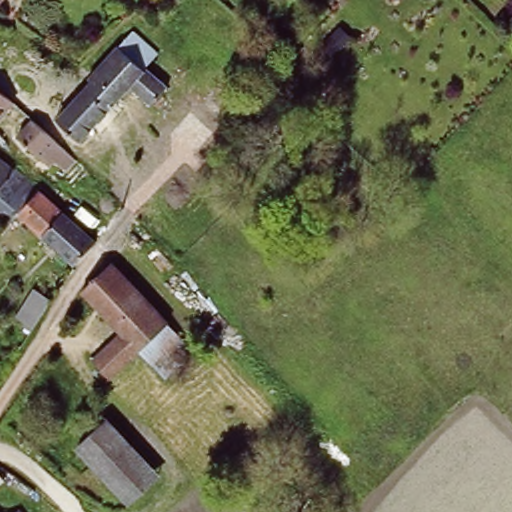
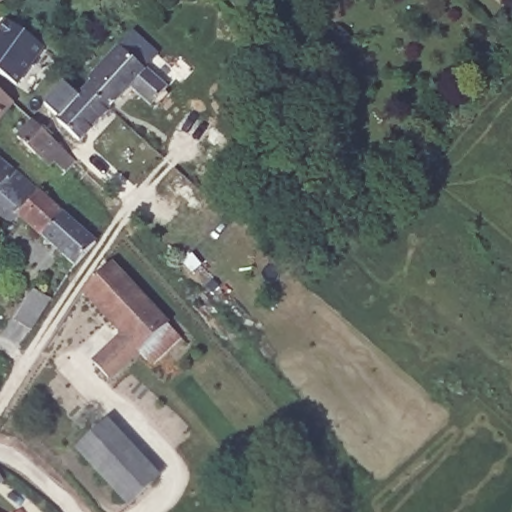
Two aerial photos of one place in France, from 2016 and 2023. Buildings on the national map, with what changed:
new [(0,72),(0,30),(7,20),(45,48),(17,85),(0,72)]
unchanged [(94,84),(90,80),(134,30),(159,53),(147,69),(169,89),(150,106),(130,88),(83,141),(59,121),(94,84)]
unchanged [(187,155),(172,140),(220,87),(240,104),(233,110),(224,101),(197,129),(205,138),(197,145),(187,155)]
unchanged [(0,92),(15,103),(0,120),(0,92)]
unchanged [(74,172),(69,168),(59,177),(17,138),(32,120),(80,165),(74,172)]
unchanged [(0,154),(41,191),(17,217),(9,227),(0,219),(0,154)]
unchanged [(17,217),(41,191),(94,243),(75,268),(17,217)]
unchanged [(114,258),(182,334),(151,361),(141,349),(115,373),(110,369),(95,361),(89,357),(120,329),(80,286),(114,258)]
unchanged [(15,313),(35,286),(52,297),(32,325),(15,313)]
unchanged [(69,396),(80,408),(65,421),(55,409),(69,396)]
unchanged [(77,444),(109,414),(163,473),(130,503),(77,444)]
unchanged [(0,487),(0,478),(5,484),(0,487)]
unchanged [(22,511),(23,512),(21,512),(22,511)]

